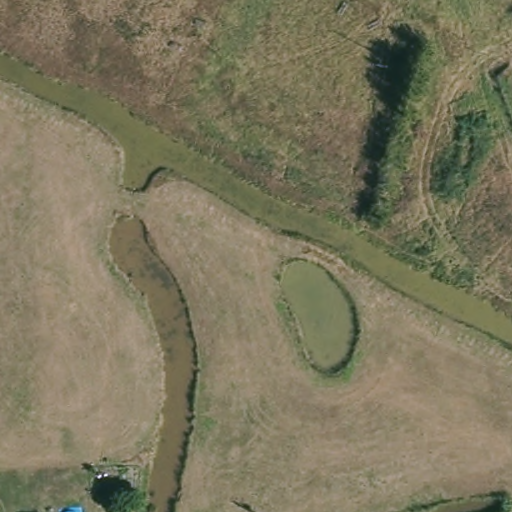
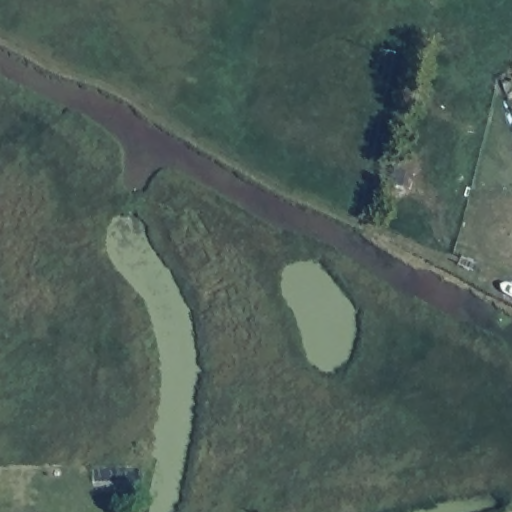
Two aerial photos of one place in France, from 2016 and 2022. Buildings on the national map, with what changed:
unchanged [(139,498),(137,512),(117,512),(120,496),(139,498)]

